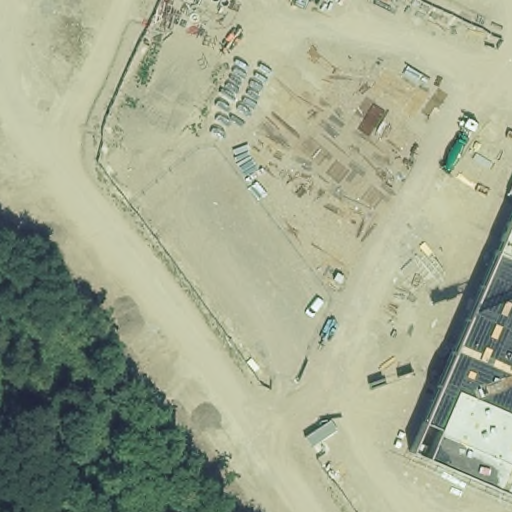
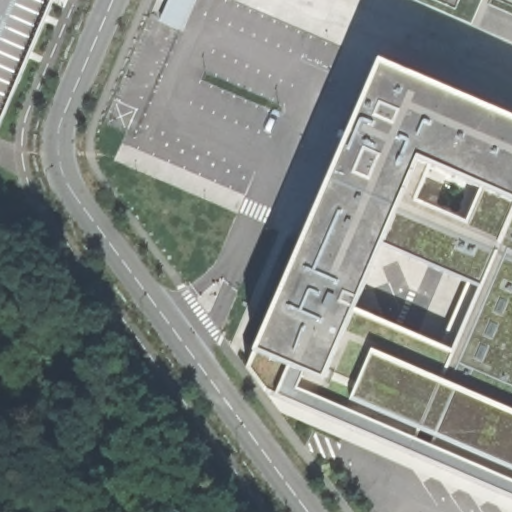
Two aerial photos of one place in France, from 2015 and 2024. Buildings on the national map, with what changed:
new [(0,0),(54,0),(0,125),(0,0)]
new [(193,0),(181,30),(160,21),(169,0),(193,0)]
new [(472,288),(371,244),(342,308),(444,352),(427,392),(414,422),(428,428),(417,458),(273,396),(260,390),(252,386),(237,367),(246,353),(374,63),(512,123),(512,194),(472,288)]
unchanged [(417,458),(428,428),(414,422),(427,392),(444,352),(472,288),(512,194),(512,376),(509,382),(512,383),(512,499),(417,458)]

